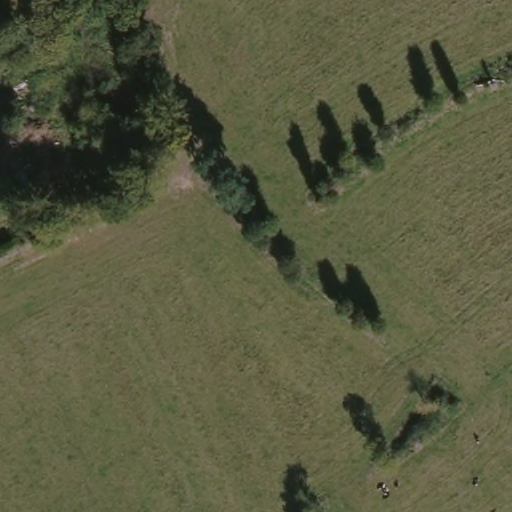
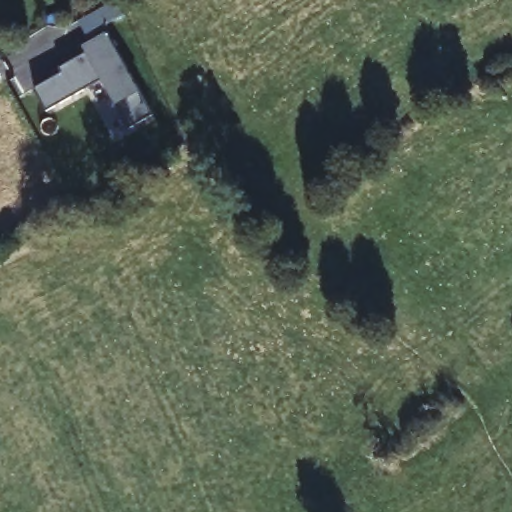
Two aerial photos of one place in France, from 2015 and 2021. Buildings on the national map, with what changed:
new [(62,73),(59,68),(86,53),(82,44),(106,33),(151,115),(131,126),(119,104),(115,105),(101,80),(46,111),(35,88),(62,73)]
demolished [(35,98),(19,107),(0,74),(0,63),(12,56),(35,98)]

